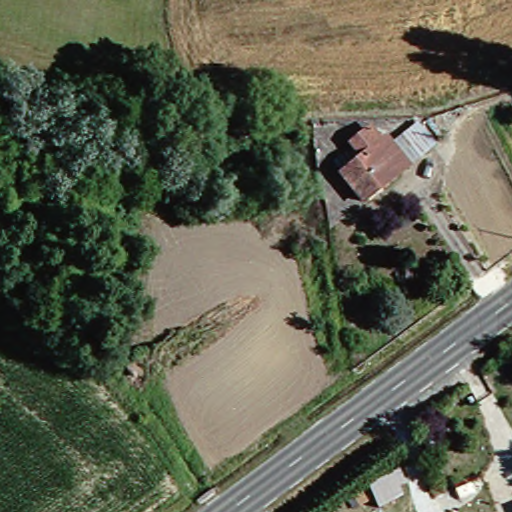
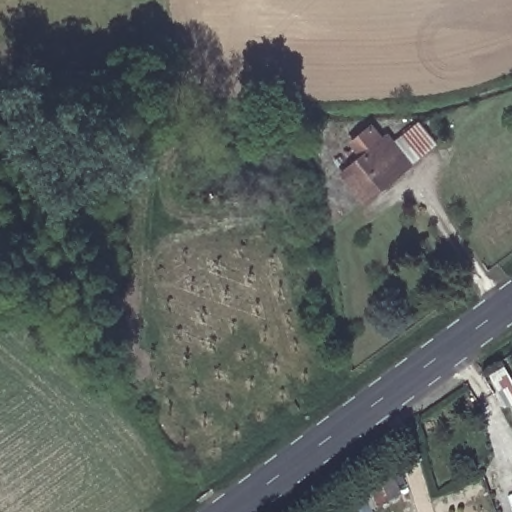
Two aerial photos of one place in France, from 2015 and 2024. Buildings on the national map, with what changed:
unchanged [(427,160),(411,137),(427,126),(442,147),(427,160)]
unchanged [(367,205),(345,175),(360,161),(352,147),(370,132),(382,145),(388,139),(413,168),(367,205)]

